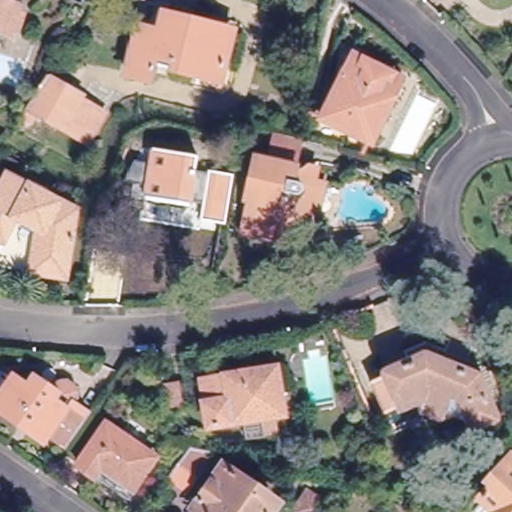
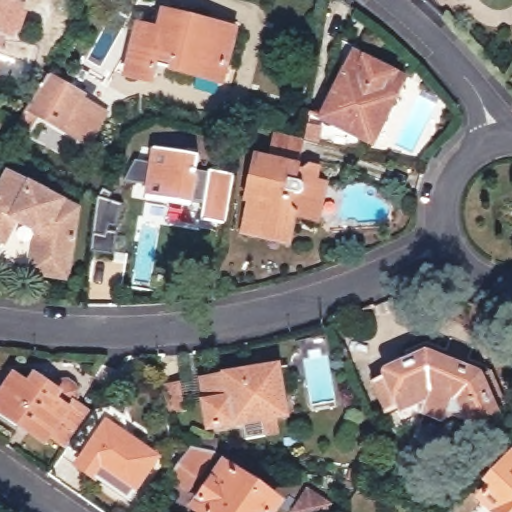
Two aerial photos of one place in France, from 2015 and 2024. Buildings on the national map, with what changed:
unchanged [(9,41),(0,39),(0,5),(18,10),(9,41)]
unchanged [(126,77),(138,32),(155,36),(160,16),(229,32),(218,79),(153,64),(148,82),(126,77)]
unchanged [(393,97),(372,138),(327,115),(356,55),(405,80),(396,99),(393,97)]
unchanged [(85,94),(83,97),(106,110),(91,140),(42,113),(35,125),(24,119),(51,75),(85,94)]
unchanged [(243,230),(249,198),(243,197),(249,160),(265,163),(271,129),(294,136),(289,164),(290,165),(300,166),(298,177),(317,181),(311,216),(290,212),(287,227),(285,237),(264,234),(243,230)]
unchanged [(148,163),(150,150),(198,157),(196,167),(210,171),(232,175),(225,224),(201,220),(204,200),(192,199),(191,204),(144,196),(145,185),(124,181),(135,160),(148,163)]
unchanged [(71,225),(70,235),(66,235),(61,265),(30,260),(33,239),(39,239),(41,218),(13,209),(2,230),(0,229),(0,182),(7,167),(72,200),(68,224),(71,225)]
unchanged [(383,377),(380,370),(433,345),(489,375),(502,368),(512,392),(512,404),(503,408),(494,412),(495,415),(489,418),(487,415),(481,417),(473,400),(463,395),(458,403),(448,407),(430,396),(430,391),(426,388),(396,402),(402,413),(383,422),(365,385),(383,377)]
unchanged [(274,411),(267,412),(270,427),(249,431),(246,416),(210,423),(201,375),(276,361),(281,387),(285,410),(274,411)]
unchanged [(65,452),(48,440),(44,446),(0,415),(0,407),(16,382),(27,390),(33,381),(51,393),(54,387),(65,385),(73,391),(74,401),(71,407),(88,418),(65,452)]
unchanged [(155,458),(131,492),(99,470),(94,477),(76,465),(105,424),(155,458)]
unchanged [(174,476),(193,450),(196,436),(219,441),(216,455),(192,488),(174,476)]
unchanged [(490,480),(486,476),(510,450),(512,451),(512,512),(501,512),(478,492),(490,480)]
unchanged [(201,506),(230,465),(261,488),(257,494),(276,507),(273,512),(210,512),(201,506)]
unchanged [(355,486),(356,476),(368,478),(367,488),(364,488),(355,486)]
unchanged [(337,510),(336,512),(288,512),(300,487),(337,510)]

